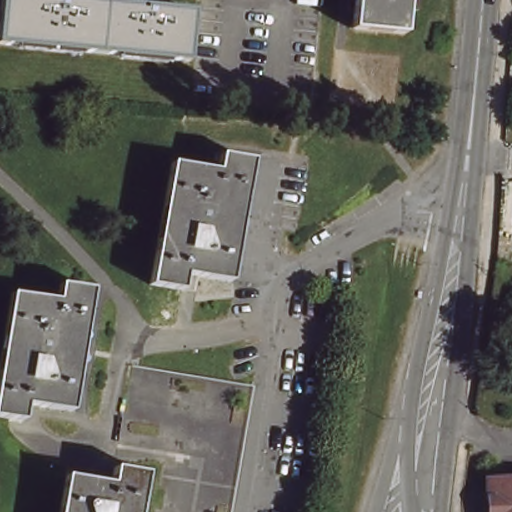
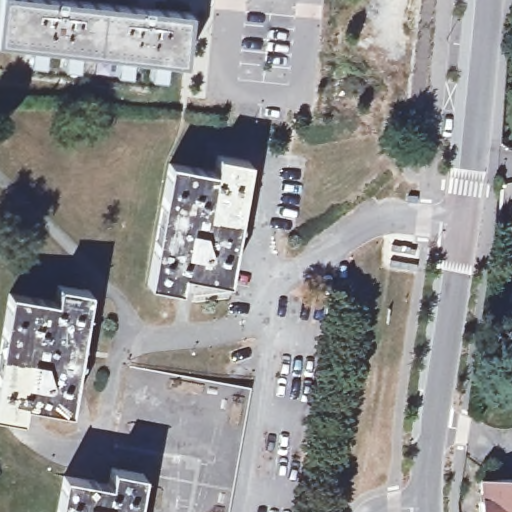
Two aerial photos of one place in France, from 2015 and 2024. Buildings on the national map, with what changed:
unchanged [(180,65),(0,47),(0,0),(33,0),(185,15),(180,65)]
demolished [(402,32),(352,27),(355,0),(405,0),(402,32)]
unchanged [(226,281),(180,273),(177,289),(145,284),(168,164),(213,172),(215,155),(245,161),(226,281)]
unchanged [(66,412),(21,406),(17,420),(0,418),(0,334),(6,296),(52,302),(54,287),(87,292),(66,412)]
unchanged [(106,483),(110,466),(141,472),(134,512),(55,512),(61,475),(106,483)]
unchanged [(512,478),(512,512),(484,512),(484,478),(512,478)]

